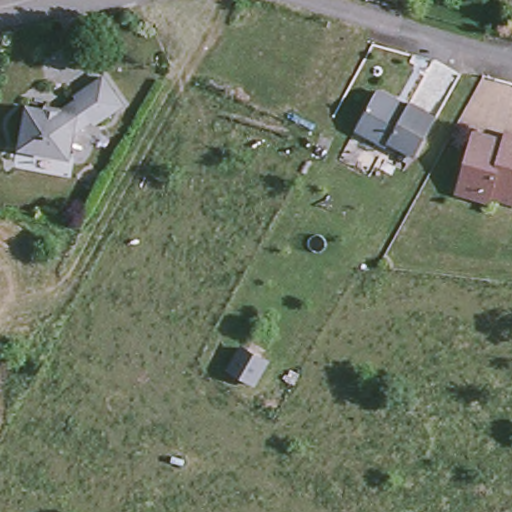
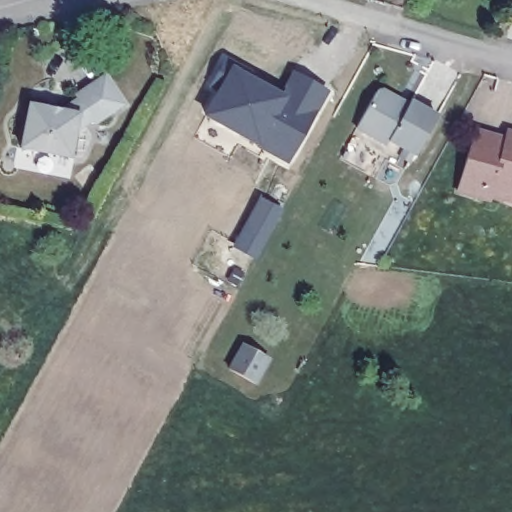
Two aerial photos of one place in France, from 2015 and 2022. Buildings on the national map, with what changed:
new [(212,86),(226,62),(254,77),(284,94),(295,75),(327,92),(289,161),(207,116),(221,91),(212,86)]
unchanged [(60,112),(79,99),(77,95),(105,77),(123,105),(95,123),(93,120),(75,132),(70,157),(22,148),(30,106),(60,112)]
unchanged [(387,136),(384,141),(352,123),(372,89),(380,87),(390,92),(392,98),(402,104),(407,98),(432,112),(412,150),(387,136)]
unchanged [(489,201),(457,192),(475,132),(505,140),(507,133),(512,135),(512,201),(490,195),(489,201)]
unchanged [(229,369),(242,348),(267,362),(255,384),(229,369)]

